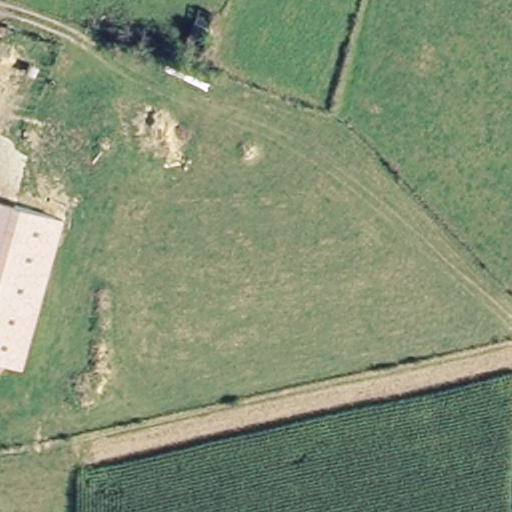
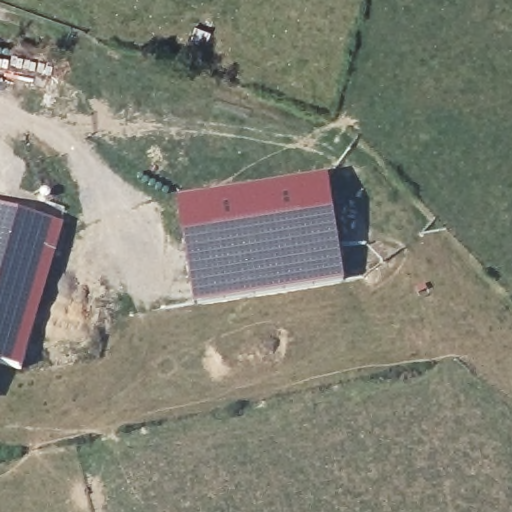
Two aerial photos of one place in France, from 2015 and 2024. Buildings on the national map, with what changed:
new [(329,175),(346,282),(275,294),(193,305),(177,200),(329,175)]
unchanged [(22,371),(0,365),(0,204),(63,222),(22,371)]

